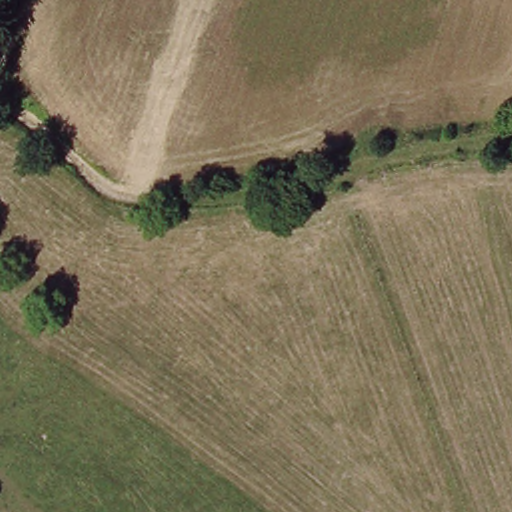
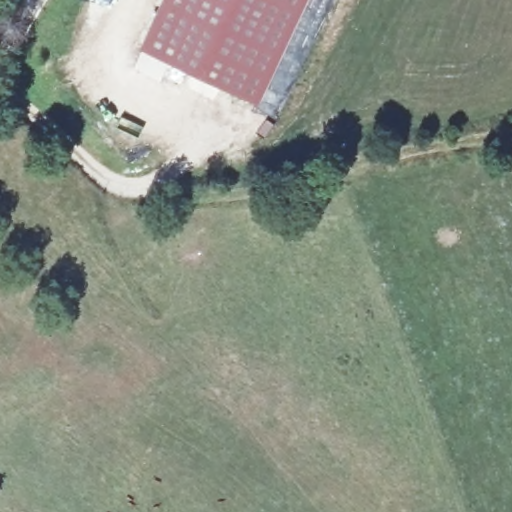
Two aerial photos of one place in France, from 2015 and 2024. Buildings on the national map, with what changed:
new [(139,48),(162,0),(308,0),(260,104),(139,48)]

